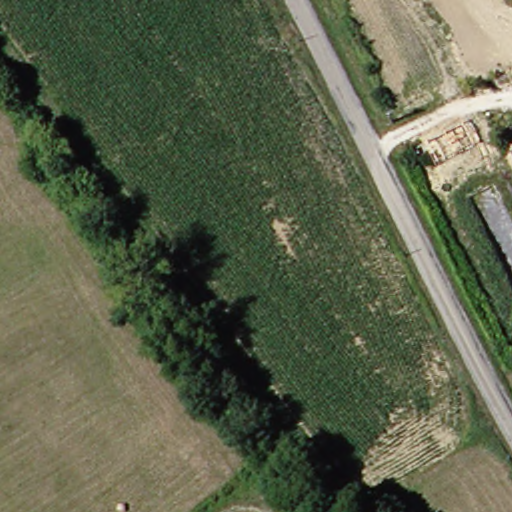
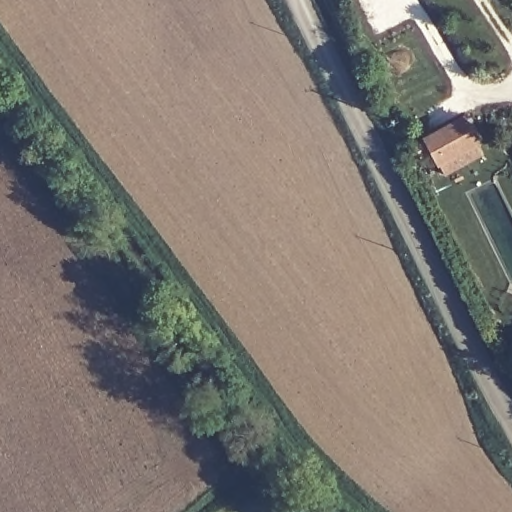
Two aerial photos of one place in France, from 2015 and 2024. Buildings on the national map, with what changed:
new [(484,155),(442,176),(429,151),(421,155),(414,144),(424,139),(464,116),(484,155)]

